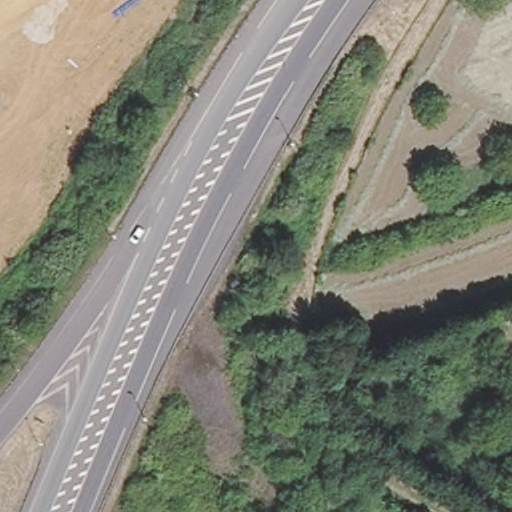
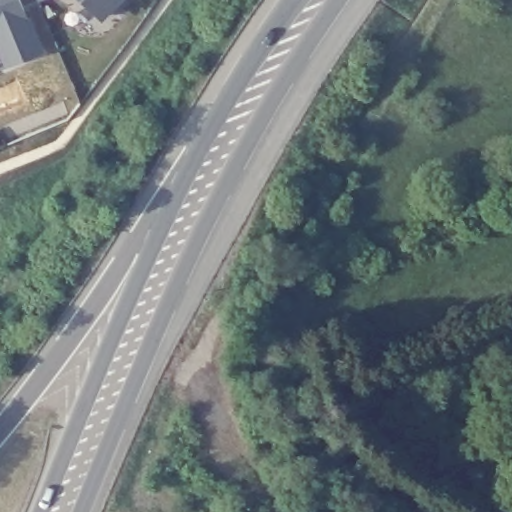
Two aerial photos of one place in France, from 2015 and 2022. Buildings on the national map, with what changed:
new [(5,68),(0,57),(0,0),(21,0),(44,52),(5,68)]
new [(39,1),(39,0),(40,0),(39,1)]
new [(102,19),(84,0),(119,0),(102,19)]
new [(0,149),(0,144),(2,149),(0,149)]

